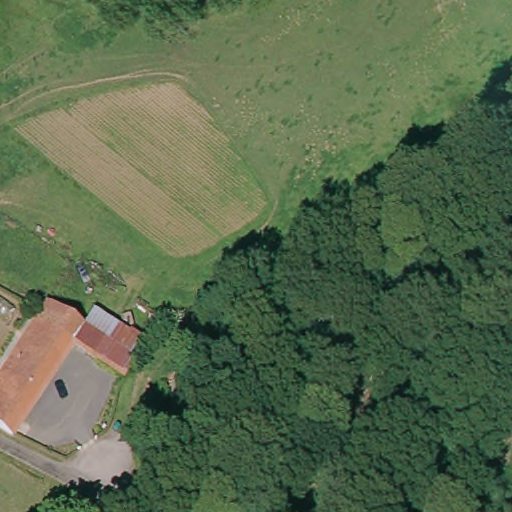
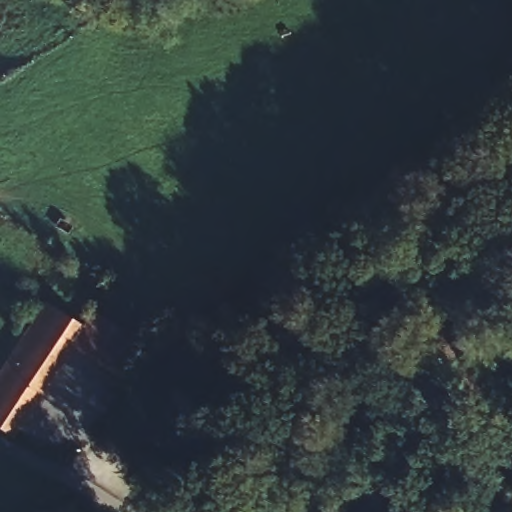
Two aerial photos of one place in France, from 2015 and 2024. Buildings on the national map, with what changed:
unchanged [(95,312),(147,346),(127,384),(74,350),(87,327),(95,312)]
unchanged [(40,318),(75,333),(67,348),(76,354),(70,365),(62,362),(22,450),(0,438),(0,410),(15,376),(40,318)]

